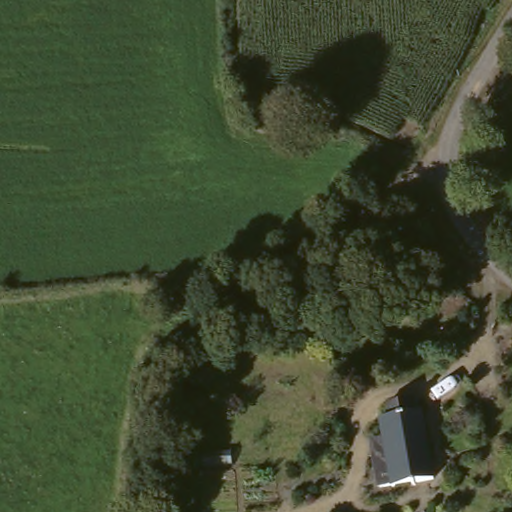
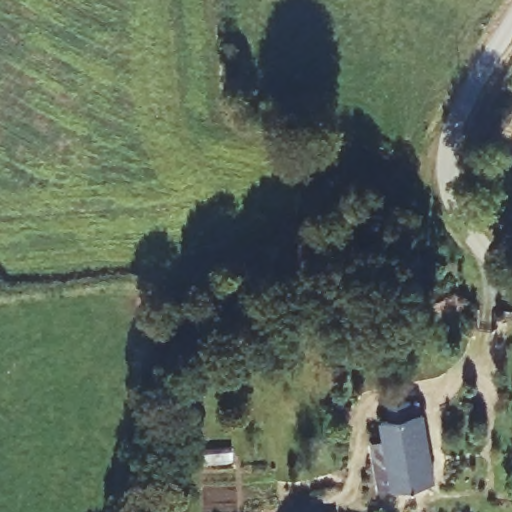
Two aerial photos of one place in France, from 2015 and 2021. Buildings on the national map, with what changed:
unchanged [(373,481),(369,459),(366,446),(378,443),(374,425),(384,423),(382,409),(410,403),(413,417),(417,416),(429,484),(389,493),(376,494),(373,481)]

